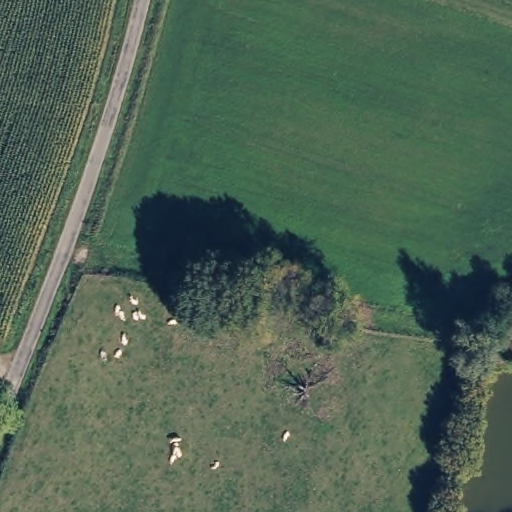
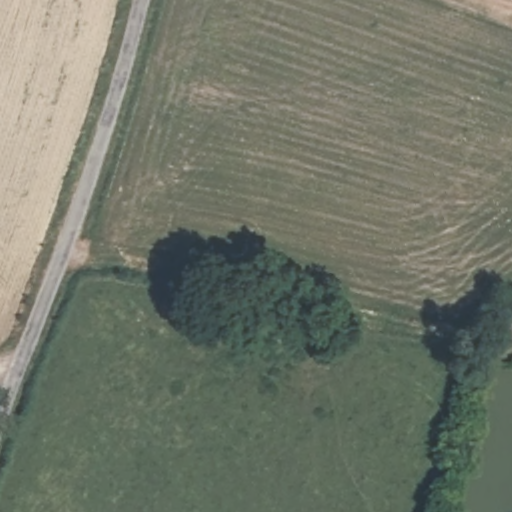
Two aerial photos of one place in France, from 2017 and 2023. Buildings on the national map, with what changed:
unchanged [(501,333),(512,320),(512,343),(501,333)]

